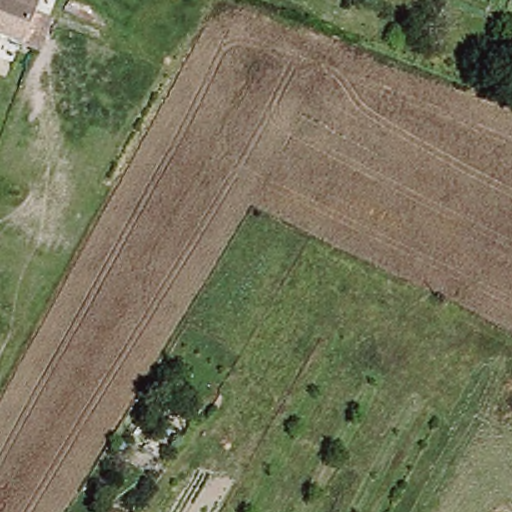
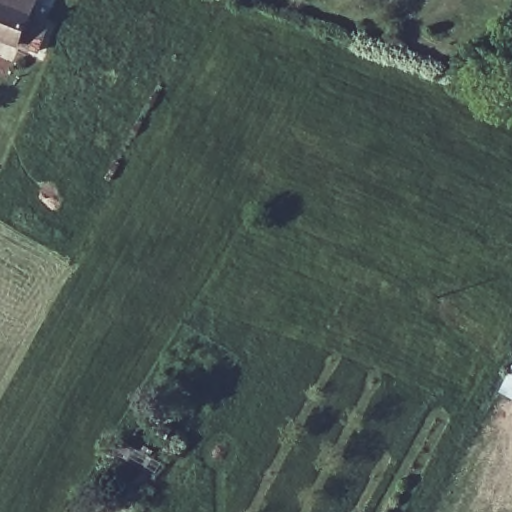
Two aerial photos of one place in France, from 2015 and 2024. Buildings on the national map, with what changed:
unchanged [(27,1),(45,10),(27,47),(0,35),(0,0),(27,0),(27,1)]

